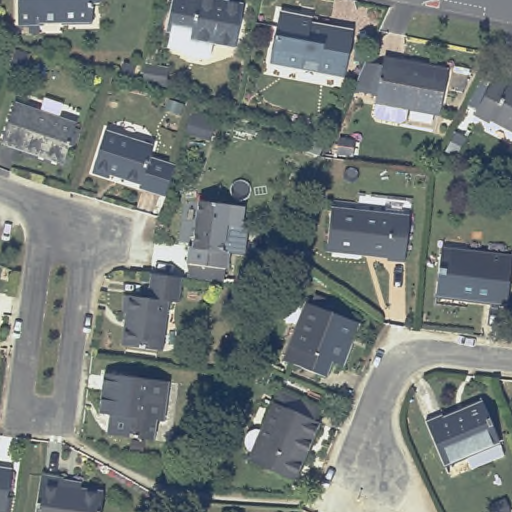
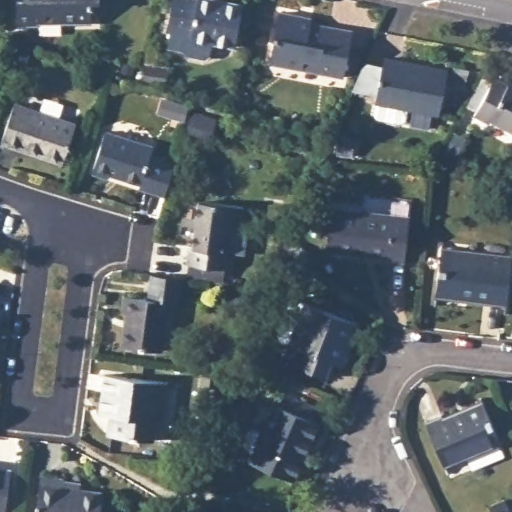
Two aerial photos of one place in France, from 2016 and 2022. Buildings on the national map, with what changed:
unchanged [(92,4),(93,21),(64,22),(64,20),(40,20),(40,25),(17,25),(17,0),(98,0),(98,3),(92,4)]
unchanged [(242,0),(233,41),(210,37),(208,50),(202,52),(184,49),(182,45),(165,42),(168,26),(164,25),(169,0),(242,0)]
unchanged [(268,62),(278,10),(312,16),(311,21),(352,29),(343,76),(268,62)]
unchanged [(451,68),(444,114),(412,110),(410,121),(406,124),(383,120),(380,116),(382,105),(380,105),(381,95),(356,91),(359,85),(368,67),(385,70),(387,59),(451,68)]
unchanged [(141,82),(144,65),(145,65),(169,69),(166,87),(141,82)]
unchanged [(490,121),(489,122),(472,115),(492,76),(507,84),(508,81),(512,83),(512,132),(490,121)]
unchanged [(1,144),(15,101),(77,121),(63,164),(1,144)]
unchanged [(217,122),(212,140),(190,134),(196,115),(217,122)]
unchanged [(120,175),(119,179),(100,173),(114,129),(164,145),(159,157),(181,165),(171,197),(149,190),(150,185),(120,175)]
unchanged [(454,134),(468,141),(459,159),(446,151),(454,134)]
unchanged [(188,283),(189,268),(186,267),(188,251),(191,252),(196,206),(241,211),(239,232),(223,231),(220,255),(226,256),(224,272),(223,288),(188,283)]
unchanged [(327,253),(330,209),(408,215),(403,262),(385,260),(385,257),(362,256),(327,253)]
unchanged [(507,300),(436,294),(440,254),(440,247),(466,250),(512,254),(507,300)]
unchanged [(161,353),(120,348),(124,315),(120,315),(122,299),(149,302),(151,278),(183,282),(180,307),(166,306),(161,353)]
unchanged [(357,323),(361,325),(353,347),(345,367),(328,361),(323,375),(286,361),(293,345),(300,326),(309,305),(357,323)]
unchanged [(114,435),(116,415),(102,413),(108,373),(170,381),(164,421),(156,420),(154,440),(114,435)]
unchanged [(292,481),(245,461),(270,404),(273,405),(278,395),(298,402),(317,410),(312,421),(316,423),(292,481)]
unchanged [(466,466),(460,452),(441,460),(423,417),(439,410),(442,415),(480,397),(496,437),(503,451),(466,466)]
unchanged [(0,467),(7,468),(0,512),(0,467)]
unchanged [(98,512),(34,512),(40,475),(62,477),(61,480),(81,482),(80,488),(101,492),(98,512)]

